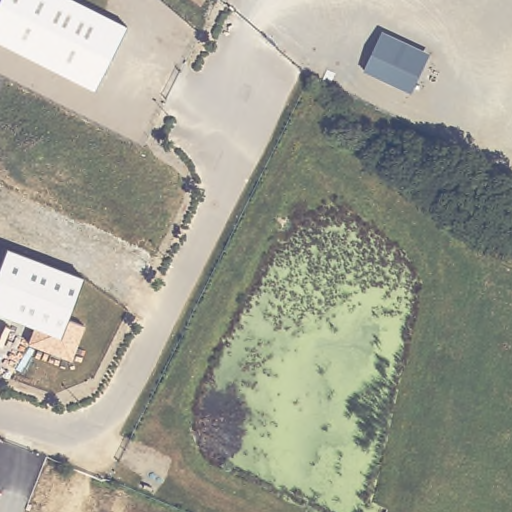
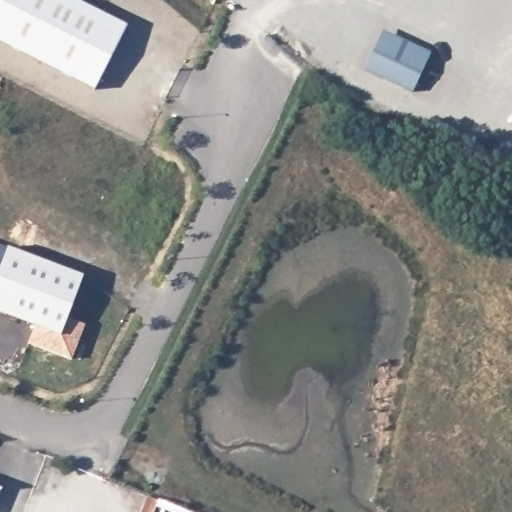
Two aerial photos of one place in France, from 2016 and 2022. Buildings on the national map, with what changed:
unchanged [(77,0),(127,25),(95,90),(0,42),(0,0),(77,0)]
unchanged [(363,71),(384,30),(431,52),(412,93),(363,71)]
unchanged [(83,278),(69,315),(88,322),(73,360),(30,344),(36,328),(0,315),(0,265),(6,249),(83,278)]

